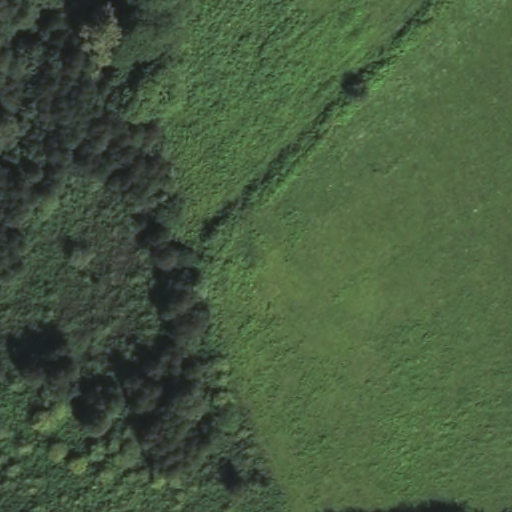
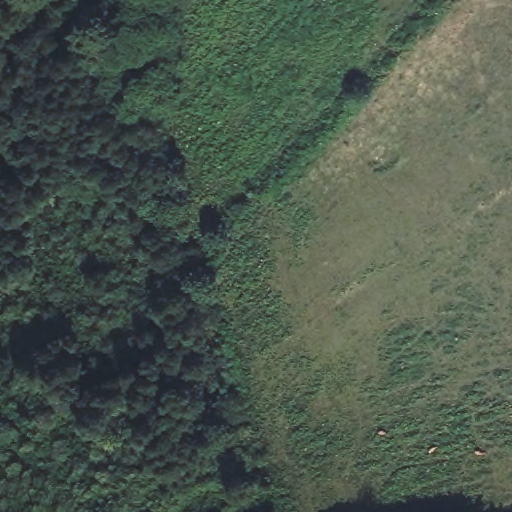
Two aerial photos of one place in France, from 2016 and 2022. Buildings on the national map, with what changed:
[]

